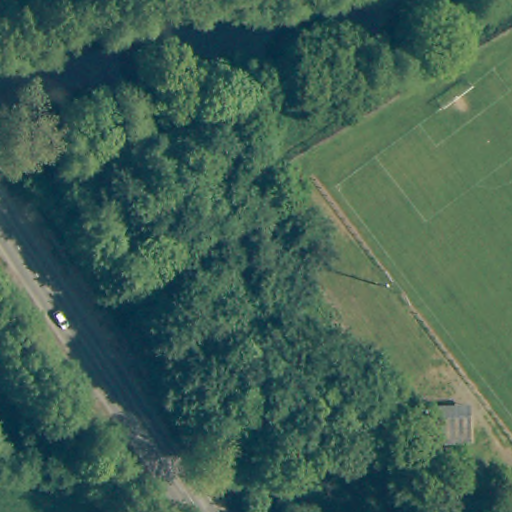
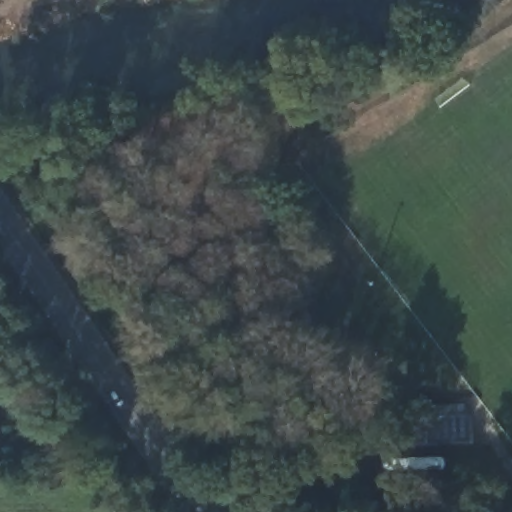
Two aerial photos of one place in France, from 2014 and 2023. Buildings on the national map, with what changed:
unchanged [(412,444),(411,401),(430,400),(430,405),(463,404),(464,414),(466,440),(412,444)]

